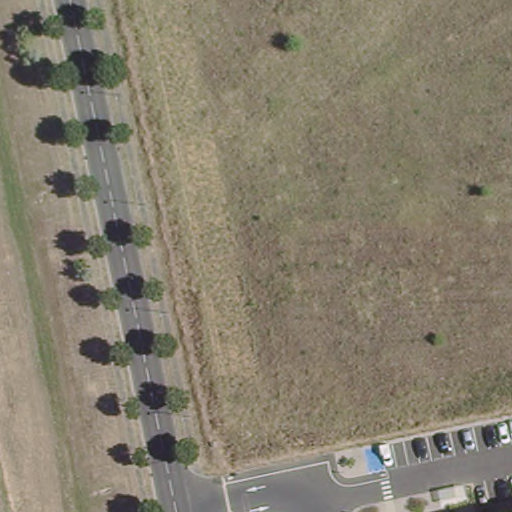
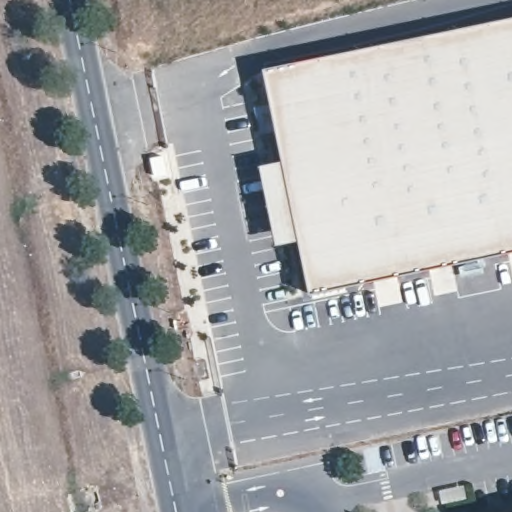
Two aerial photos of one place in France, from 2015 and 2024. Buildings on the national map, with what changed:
new [(301,239),(278,244),(261,166),(285,161),(266,68),(512,18),(512,251),(311,292),(301,239)]

